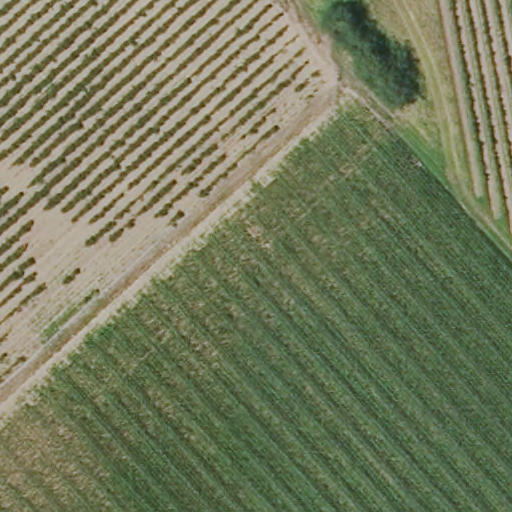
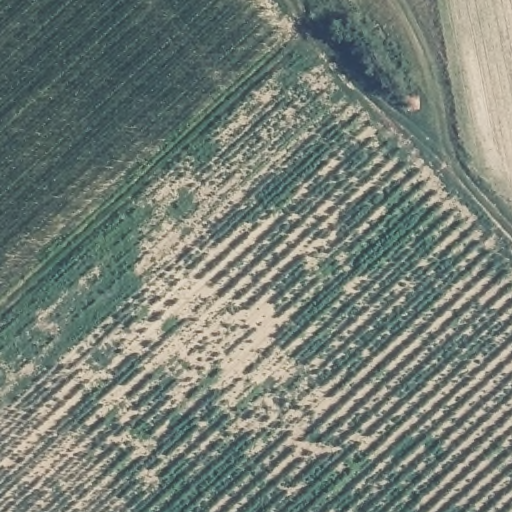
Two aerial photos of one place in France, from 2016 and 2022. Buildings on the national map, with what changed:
[]

